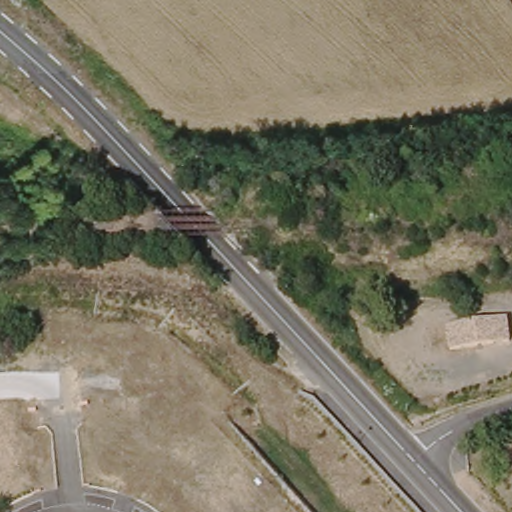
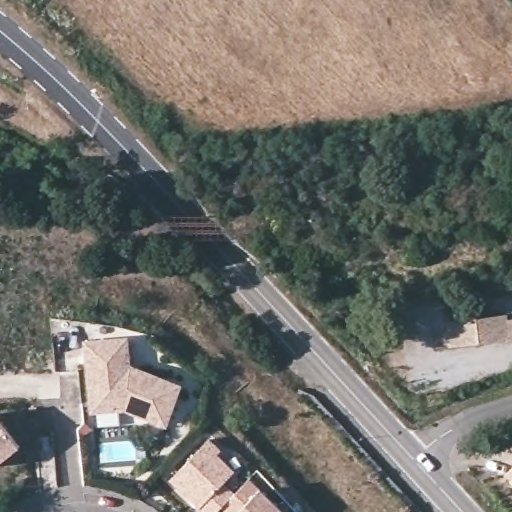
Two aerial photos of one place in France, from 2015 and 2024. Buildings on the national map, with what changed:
unchanged [(443,322),(506,318),(509,344),(446,347),(443,322)]
new [(125,339),(128,368),(177,388),(163,425),(124,410),(90,413),(84,343),(125,339)]
new [(20,447),(0,462),(0,423),(20,447)]
new [(168,481),(207,440),(220,452),(216,456),(233,473),(222,484),(233,495),(219,509),(216,512),(201,512),(197,509),(181,493),(168,481)]
new [(512,483),(505,476),(512,469),(512,483)]
new [(233,495),(246,481),(279,512),(222,512),(219,509),(233,495)]

